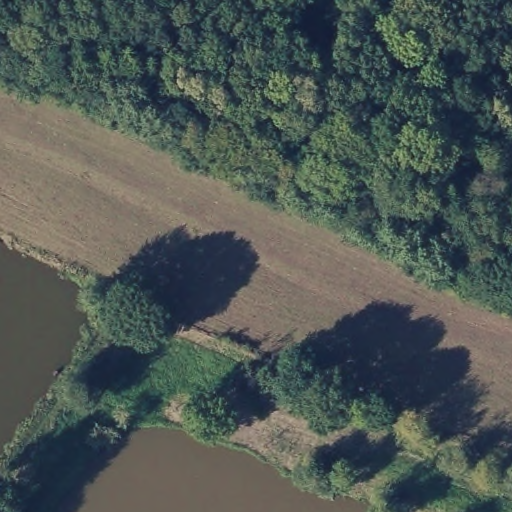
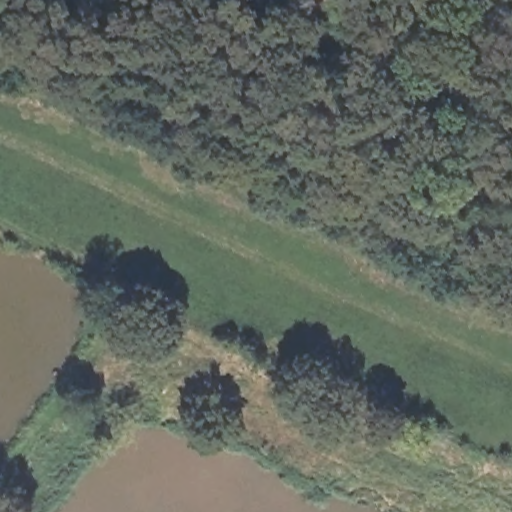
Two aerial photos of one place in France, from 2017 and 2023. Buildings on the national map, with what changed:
[]

